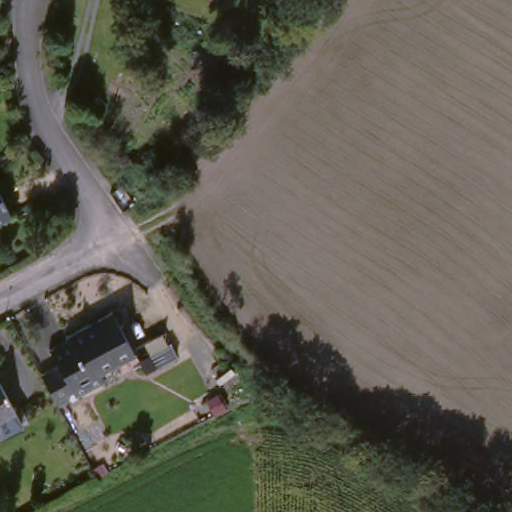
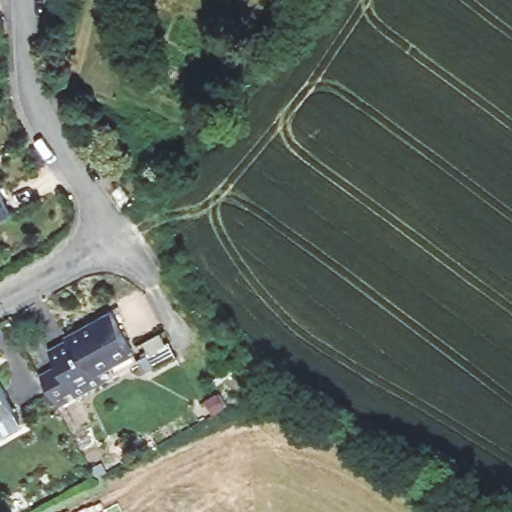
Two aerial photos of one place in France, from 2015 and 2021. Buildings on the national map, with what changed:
unchanged [(0,222),(0,199),(9,216),(0,222)]
unchanged [(43,374),(60,365),(53,354),(69,345),(67,340),(111,313),(137,355),(103,375),(109,387),(81,402),(78,395),(68,400),(71,405),(63,410),(43,374)]
unchanged [(0,387),(14,413),(0,421),(0,387)]

